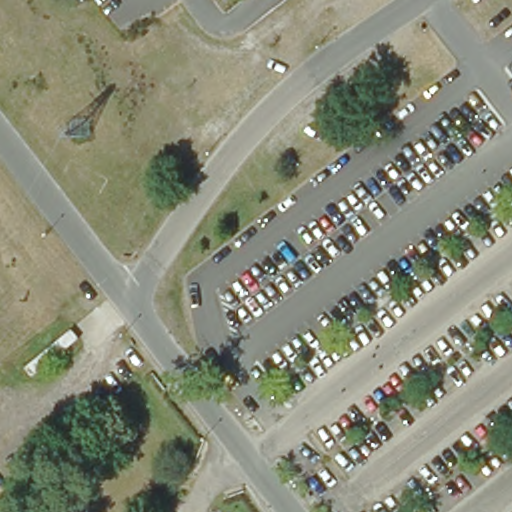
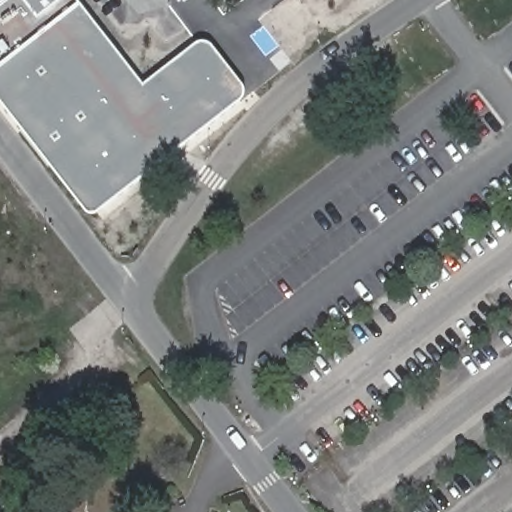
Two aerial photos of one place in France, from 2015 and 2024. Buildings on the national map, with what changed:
new [(143,87),(206,40),(248,95),(90,216),(0,99),(0,8),(10,0),(76,0),(143,87)]

